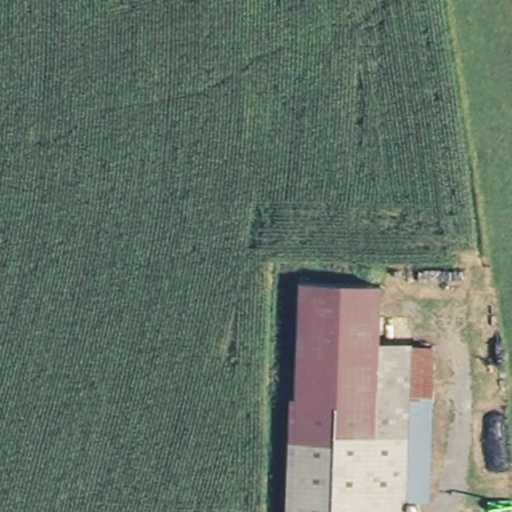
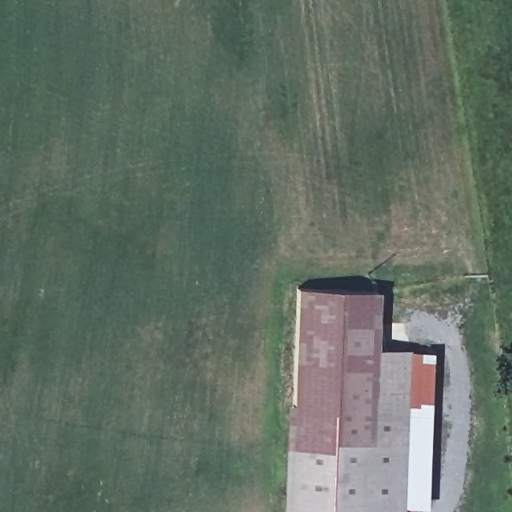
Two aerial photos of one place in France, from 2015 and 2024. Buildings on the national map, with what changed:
unchanged [(380,293),(372,479),(371,512),(291,512),(300,286),(332,288),(380,293)]
unchanged [(382,348),(437,352),(432,508),(406,508),(406,512),(378,512),(382,348)]

